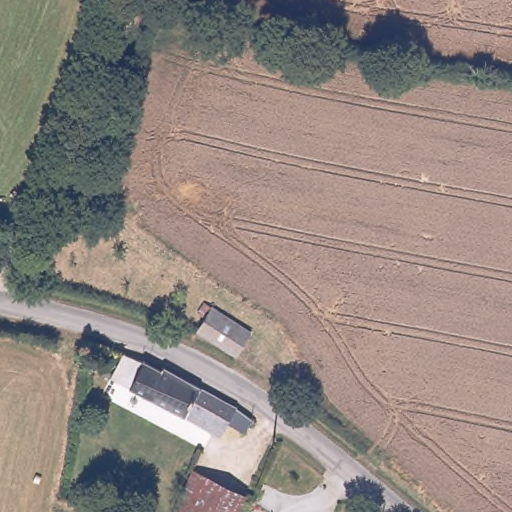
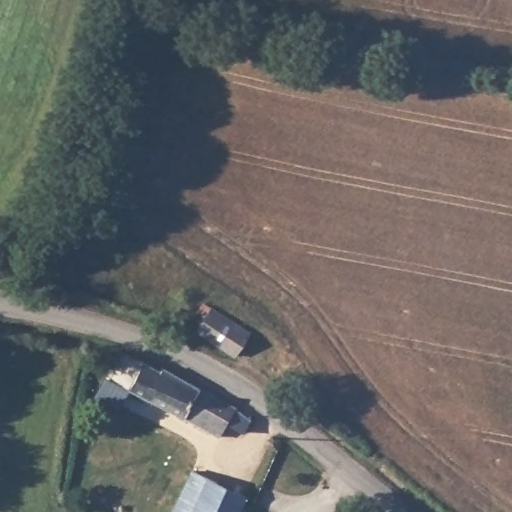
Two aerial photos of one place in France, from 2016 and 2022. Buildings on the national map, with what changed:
unchanged [(195,330),(205,316),(197,312),(204,302),(249,331),(234,356),(195,330)]
unchanged [(217,442),(182,422),(185,416),(128,387),(112,378),(124,356),(138,362),(159,371),(160,368),(209,392),(250,421),(245,430),(241,428),(231,445),(220,438),(217,442)]
unchanged [(194,471),(243,493),(234,512),(174,512),(194,471)]

